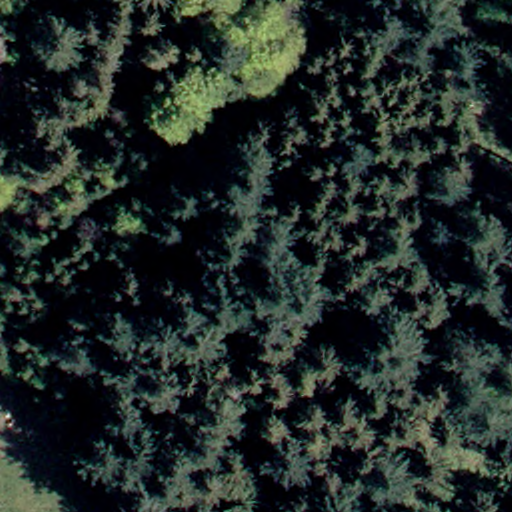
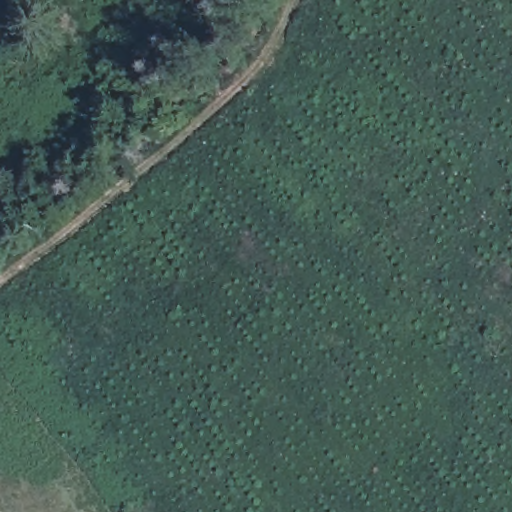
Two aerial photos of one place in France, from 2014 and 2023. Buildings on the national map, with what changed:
[]

